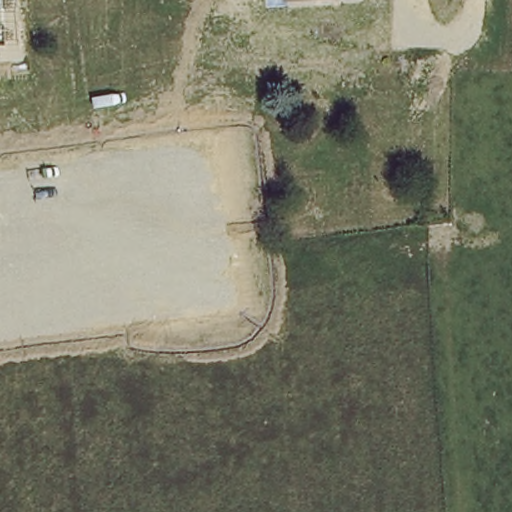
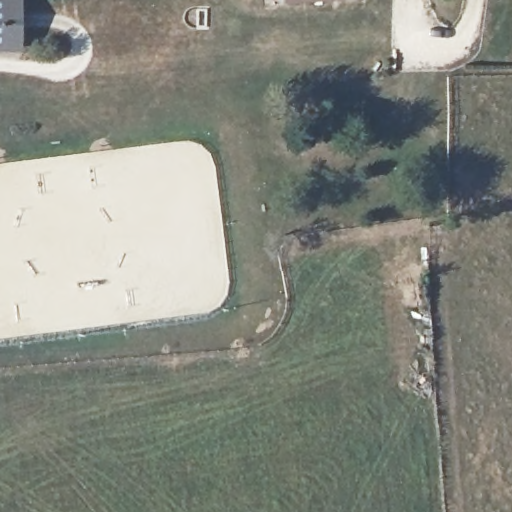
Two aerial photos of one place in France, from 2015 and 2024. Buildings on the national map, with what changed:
new [(23,50),(0,49),(0,0),(23,0),(23,50)]
unchanged [(297,9),(298,20),(278,23),(275,0),(365,0),(297,9)]

